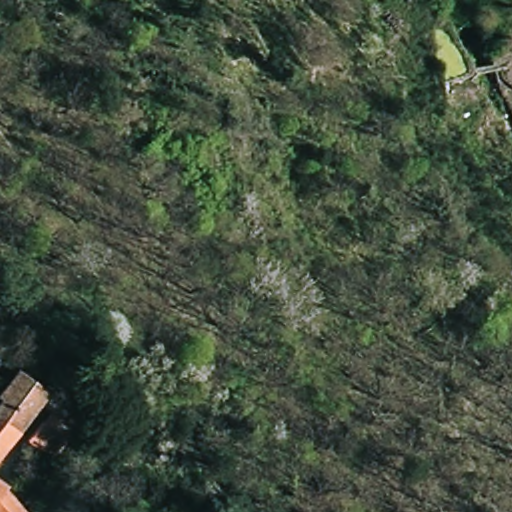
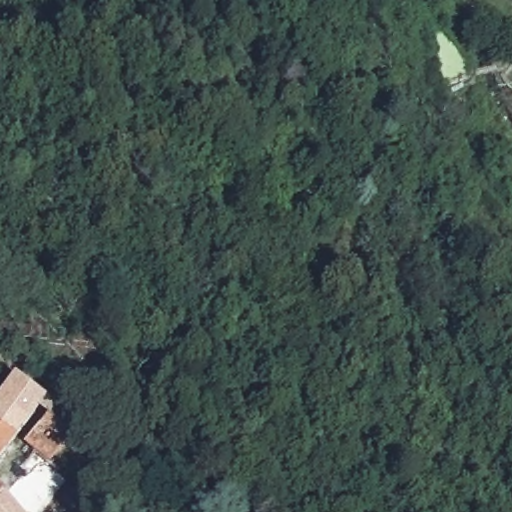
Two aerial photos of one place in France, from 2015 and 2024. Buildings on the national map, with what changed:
unchanged [(47,426),(57,415),(48,408),(24,437),(16,429),(27,418),(2,399),(21,379),(33,384),(55,400),(64,407),(90,426),(71,447),(55,464),(45,454),(32,443),(47,426)]
unchanged [(27,418),(16,429),(24,437),(0,467),(0,401),(2,399),(27,418)]
unchanged [(0,512),(0,488),(28,512),(0,512)]

